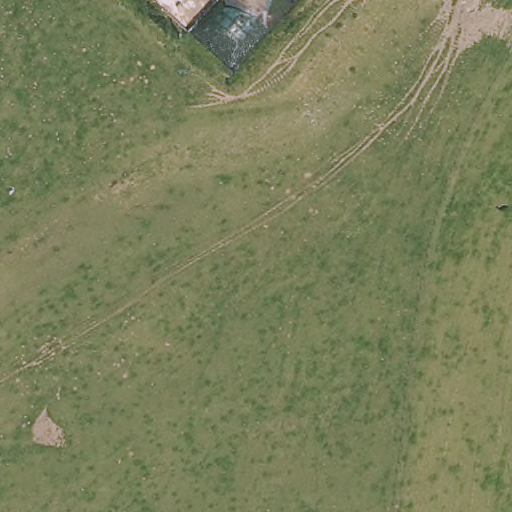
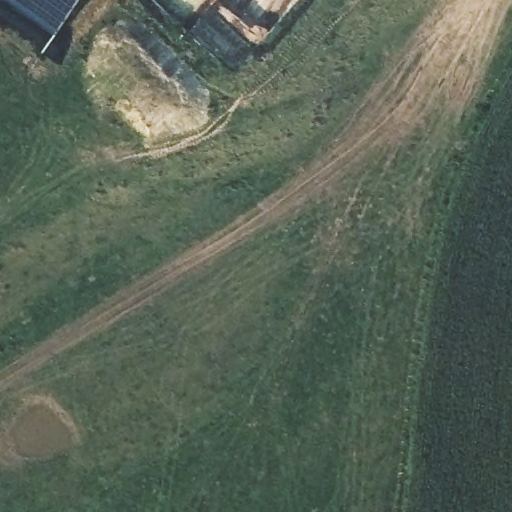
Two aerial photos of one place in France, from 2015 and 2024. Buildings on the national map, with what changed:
new [(56,35),(5,0),(80,0),(56,35)]

